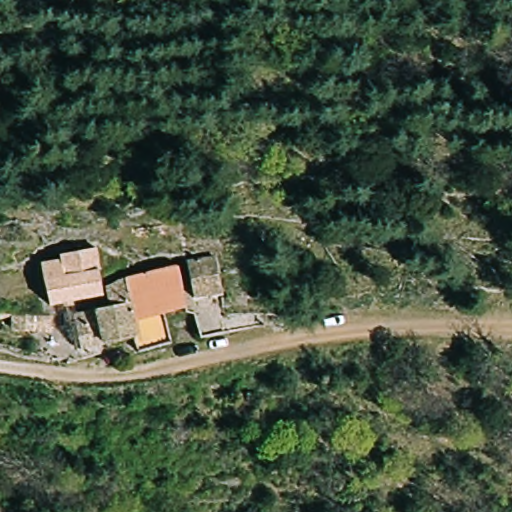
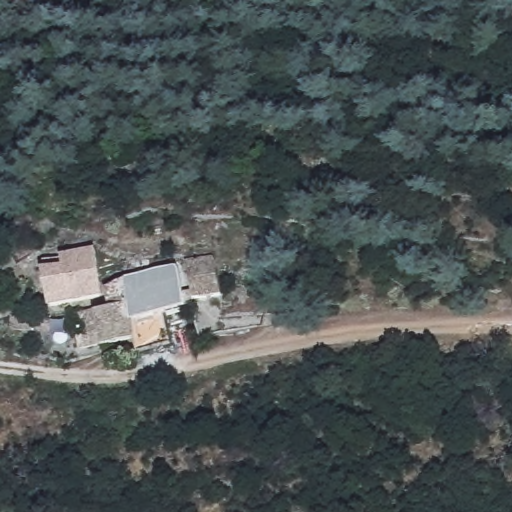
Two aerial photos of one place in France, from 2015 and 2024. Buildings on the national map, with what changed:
unchanged [(70,316),(105,309),(104,300),(47,308),(37,260),(96,249),(102,287),(177,263),(183,302),(191,302),(188,259),(218,256),(223,300),(223,331),(199,338),(191,309),(164,318),(170,342),(138,355),(134,343),(79,355),(70,316)]
unchanged [(32,323),(12,322),(13,307),(33,308),(32,323)]

